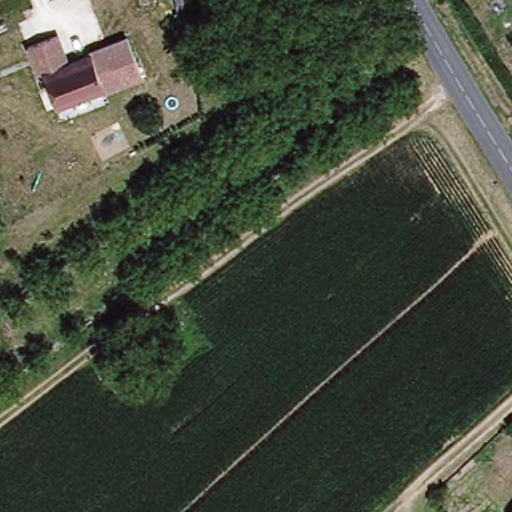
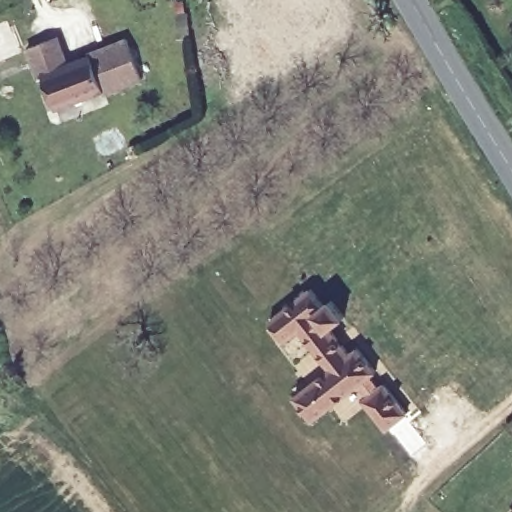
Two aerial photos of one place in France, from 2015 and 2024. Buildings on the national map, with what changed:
unchanged [(72,54),(129,33),(146,80),(61,114),(49,82),(41,86),(28,48),(63,35),(72,54)]
new [(310,284),(325,301),(331,297),(347,317),(334,328),(351,350),(358,345),(379,371),(374,375),(353,391),(315,421),(293,395),(326,369),(297,332),(285,342),(267,320),(310,284)]
new [(374,375),(380,383),(383,380),(408,412),(387,430),(353,391),(374,375)]

